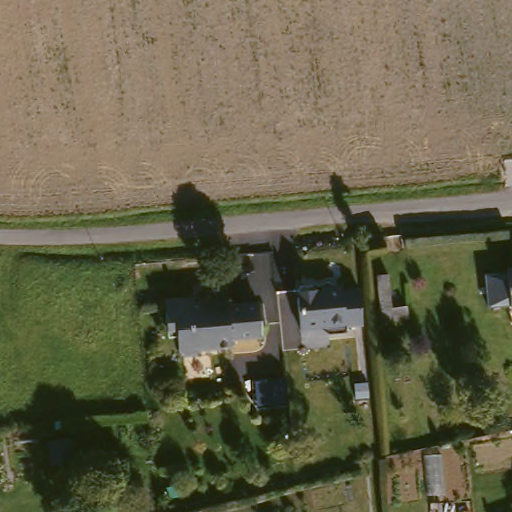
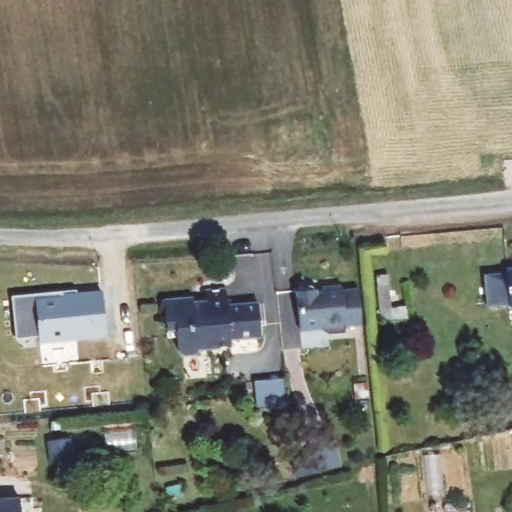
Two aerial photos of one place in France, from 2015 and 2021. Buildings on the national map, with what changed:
unchanged [(396,269),(400,302),(415,301),(416,313),(389,315),(385,270),(396,269)]
unchanged [(502,303),(498,271),(512,269),(512,301),(502,303)]
unchanged [(312,285),(322,284),(328,288),(328,291),(333,291),(333,286),(353,284),(353,289),(371,287),(372,307),(373,323),(357,325),(357,331),(339,333),(332,327),(311,329),(307,290),(312,285)]
new [(107,338),(41,344),(39,336),(16,337),(14,296),(78,290),(78,293),(102,290),(107,338)]
unchanged [(258,339),(227,341),(227,349),(196,352),(192,357),(180,358),(175,354),(173,332),(163,333),(161,304),(190,301),(190,306),(202,305),(202,293),(222,291),(224,309),(255,306),(258,339)]
new [(0,500),(20,497),(21,512),(0,512),(0,500)]

